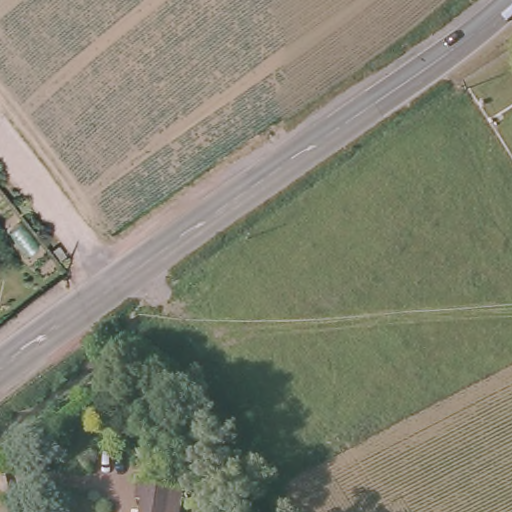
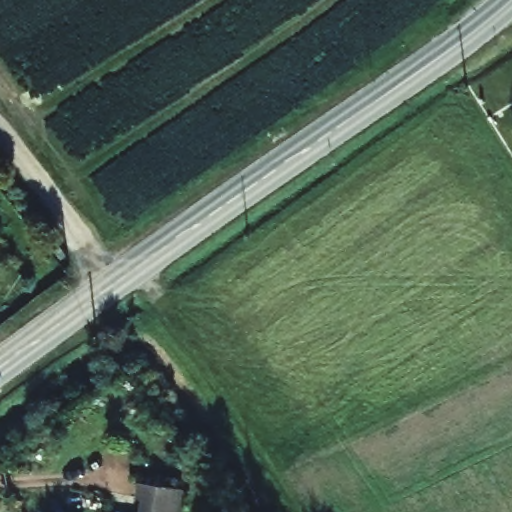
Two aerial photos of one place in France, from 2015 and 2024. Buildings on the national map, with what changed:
unchanged [(147,499),(139,496),(141,479),(186,489),(182,505),(169,504),(167,512),(144,512),(147,499)]

